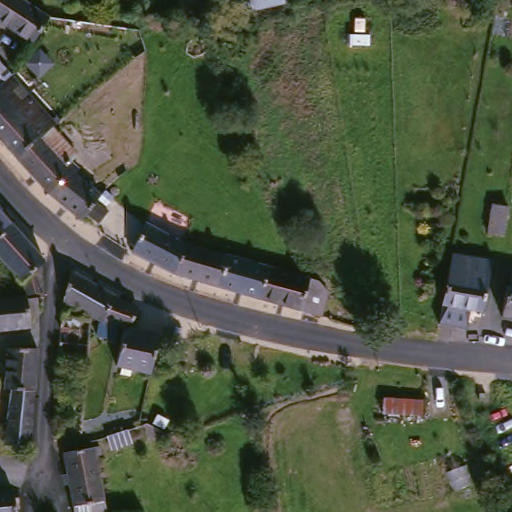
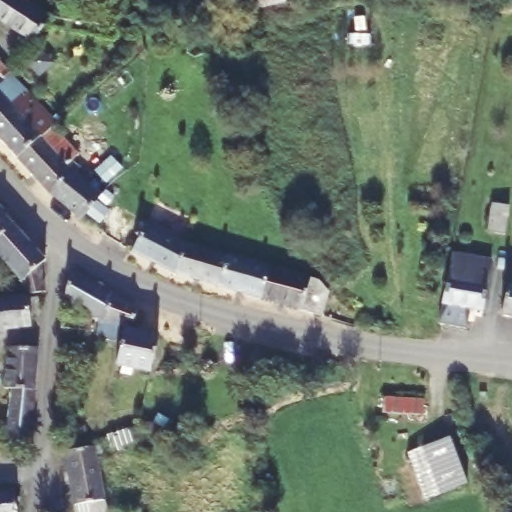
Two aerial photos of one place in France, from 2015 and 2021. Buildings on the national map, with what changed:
unchanged [(33,40),(0,19),(0,0),(27,0),(49,14),(33,40)]
unchanged [(240,15),(236,0),(284,0),(285,5),(240,15)]
unchanged [(0,55),(0,53),(6,45),(17,54),(10,64),(0,55)]
unchanged [(0,63),(5,69),(49,117),(46,120),(13,154),(0,140),(0,63)]
unchanged [(46,120),(73,149),(66,156),(70,160),(66,165),(66,166),(44,189),(13,154),(46,120)]
unchanged [(78,215),(44,189),(66,166),(96,190),(78,215)]
unchanged [(98,235),(83,223),(101,205),(116,216),(98,235)]
unchanged [(0,207),(13,221),(0,232),(0,207)]
unchanged [(499,240),(486,237),(489,215),(503,218),(499,240)]
unchanged [(138,220),(136,225),(128,221),(129,217),(138,220)]
unchanged [(184,240),(176,271),(133,249),(147,220),(184,240)]
unchanged [(46,258),(41,261),(46,290),(28,292),(23,280),(0,255),(0,232),(13,221),(46,258)]
unchanged [(226,253),(217,284),(176,271),(184,240),(226,253)]
unchanged [(270,265),(261,297),(217,284),(226,253),(270,265)]
unchanged [(459,312),(458,318),(440,315),(441,309),(438,308),(447,265),(448,255),(488,261),(486,270),(478,315),(459,312)]
unchanged [(316,278),(330,288),(323,314),(296,307),(261,297),(270,265),(316,278)]
unchanged [(131,323),(118,322),(118,333),(103,332),(103,321),(95,317),(95,318),(56,311),(56,296),(71,269),(116,293),(141,306),(131,323)]
unchanged [(503,305),(509,275),(512,275),(512,306),(503,305)]
unchanged [(38,295),(39,312),(31,313),(31,327),(0,329),(0,297),(29,295),(29,296),(38,295)]
unchanged [(56,311),(95,318),(88,350),(59,351),(56,311)]
unchanged [(118,364),(126,327),(129,328),(159,334),(151,369),(118,364)]
unchanged [(1,386),(2,370),(0,370),(0,360),(4,360),(5,344),(36,346),(33,387),(31,418),(28,445),(3,442),(6,417),(8,386),(1,386)]
unchanged [(422,398),(422,415),(383,415),(383,398),(422,398)]
unchanged [(146,456),(138,449),(106,458),(104,448),(113,445),(140,435),(154,445),(146,456)]
new [(451,437),(468,485),(440,494),(423,448),(451,437)]
unchanged [(96,458),(98,463),(92,465),(101,512),(69,512),(61,465),(96,458)]
unchanged [(16,484),(16,500),(11,501),(12,512),(0,512),(0,492),(8,491),(8,485),(16,484)]

